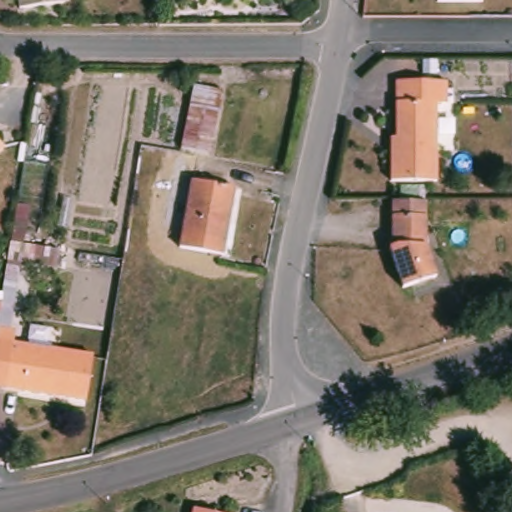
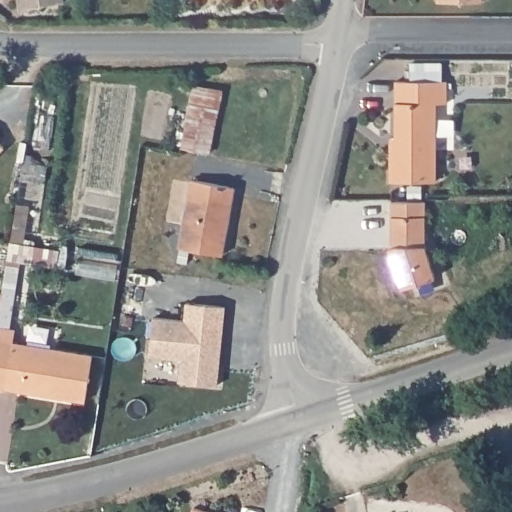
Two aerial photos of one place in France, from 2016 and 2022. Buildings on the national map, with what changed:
unchanged [(14,15),(12,0),(58,0),(59,11),(14,15)]
unchanged [(437,2),(437,0),(482,0),(482,3),(437,2)]
unchanged [(394,139),(395,83),(446,84),(446,106),(435,106),(434,184),(388,183),(388,161),(389,139),(394,139)]
unchanged [(216,142),(187,138),(193,92),(222,96),(216,142)]
unchanged [(0,152),(0,140),(6,145),(0,152)]
unchanged [(222,257),(177,249),(189,180),(234,188),(222,257)]
unchanged [(432,243),(442,275),(408,285),(395,244),(398,244),(399,198),(418,198),(432,198),(432,243)]
unchanged [(65,245),(62,265),(21,259),(7,257),(10,237),(65,245)]
unchanged [(0,326),(0,305),(7,257),(21,259),(11,328),(0,326)]
new [(154,318),(185,320),(187,303),(226,307),(219,385),(180,382),(182,359),(150,357),(154,318)]
unchanged [(0,383),(0,336),(14,338),(93,349),(86,396),(7,384),(0,383)]
unchanged [(194,507),(217,512),(193,512),(194,507)]

